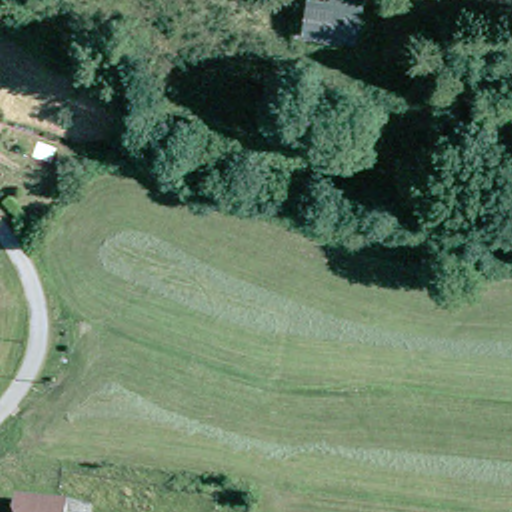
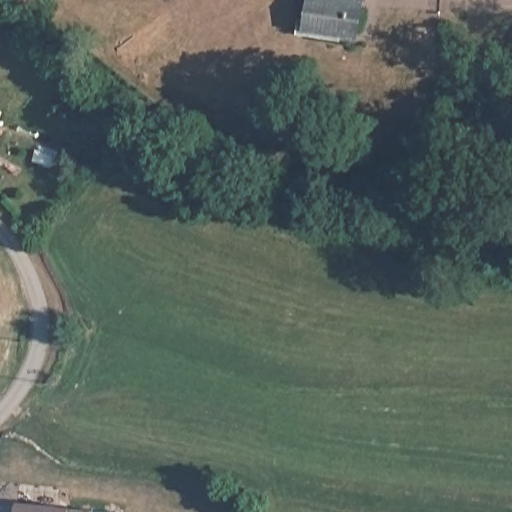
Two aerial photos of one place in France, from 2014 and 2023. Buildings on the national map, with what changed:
unchanged [(337,0),(368,0),(362,46),(310,39),(314,8),(335,11),(337,0)]
unchanged [(73,505),(72,512),(20,512),(22,500),(73,505)]
unchanged [(94,512),(72,512),(73,505),(94,507),(94,512)]

